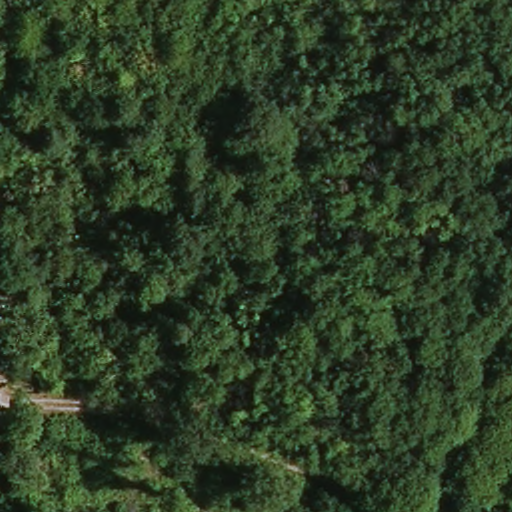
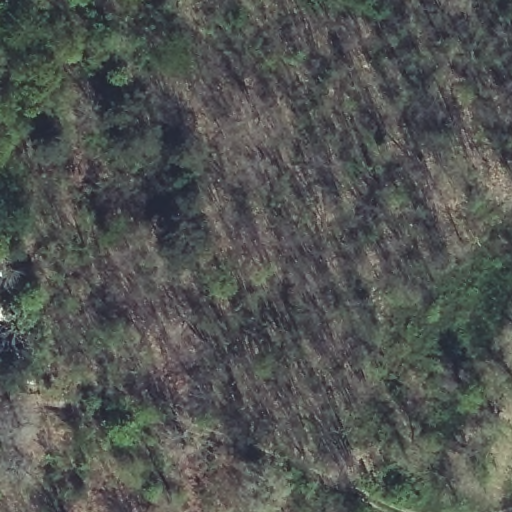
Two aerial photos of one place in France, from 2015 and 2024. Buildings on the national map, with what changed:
unchanged [(0,325),(0,306),(16,304),(20,322),(0,325)]

